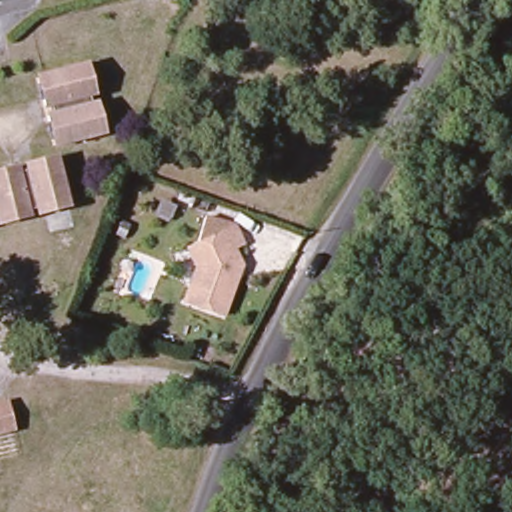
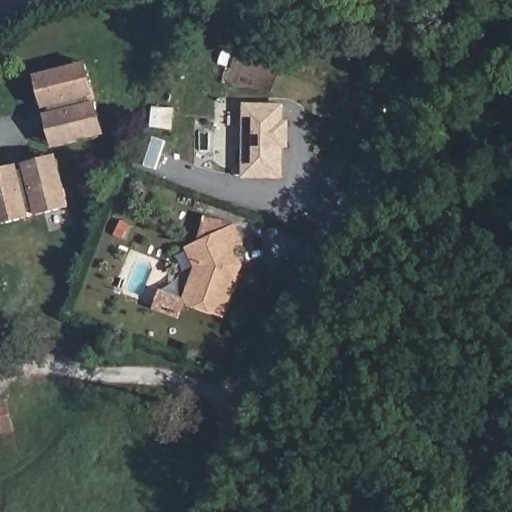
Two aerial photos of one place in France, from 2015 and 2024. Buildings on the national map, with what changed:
unchanged [(44,116),(53,115),(51,111),(44,112),(43,103),(40,91),(38,81),(45,79),(78,72),(87,70),(89,79),(93,92),(94,100),(88,102),(89,108),(95,107),(98,114),(102,134),(104,142),(97,144),(62,151),(52,153),(50,144),(46,124),(44,116)]
new [(284,105),(284,121),(291,121),(291,145),(284,145),(284,175),(247,175),(248,105),(284,105)]
unchanged [(18,168),(19,176),(26,175),(24,166),(32,165),(46,161),(58,159),(59,165),(69,208),(71,216),(61,218),(46,221),(37,224),(35,217),(29,218),(31,225),(25,226),(4,230),(0,230),(0,172),(9,170),(18,168)]
unchanged [(234,228),(242,245),(234,249),(241,267),(235,269),(232,277),(237,279),(221,318),(182,302),(195,268),(187,249),(194,246),(204,217),(234,228)]
unchanged [(15,436),(0,439),(0,411),(10,410),(15,436)]

